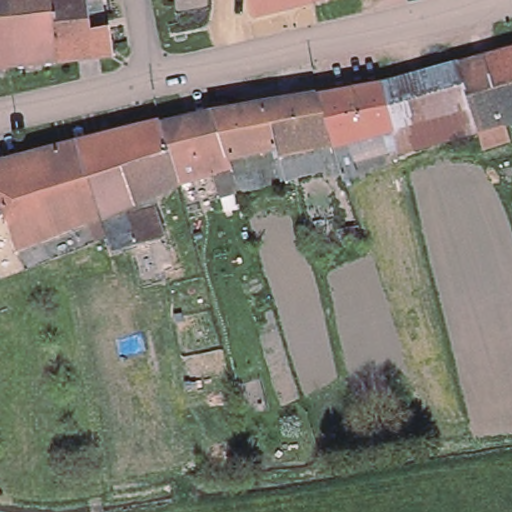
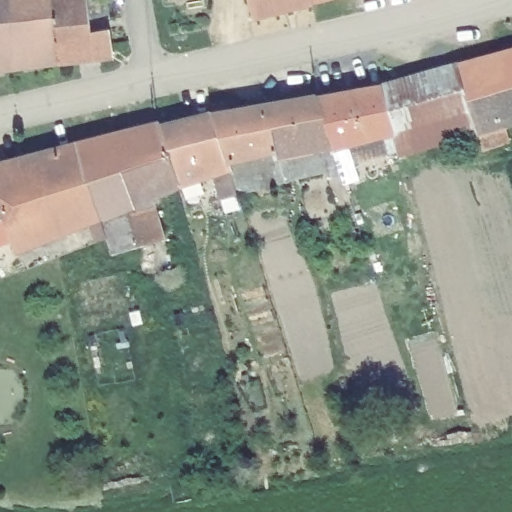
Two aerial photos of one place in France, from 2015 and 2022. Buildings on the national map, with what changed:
unchanged [(14,67),(0,68),(0,0),(10,0),(14,67)]
unchanged [(92,30),(55,35),(57,62),(14,67),(10,0),(88,0),(92,30)]
unchanged [(312,1),(292,6),(255,16),(250,0),(314,0),(312,1)]
unchanged [(92,30),(110,28),(114,55),(57,62),(55,35),(92,30)]
unchanged [(484,153),(479,132),(461,137),(399,154),(392,132),(395,131),(382,84),(457,64),(482,57),(512,49),(512,121),(504,124),(510,145),(484,153)]
unchanged [(339,168),(332,149),(304,153),(278,159),(276,149),(265,105),(317,96),(382,84),(395,131),(392,132),(387,133),(347,145),(353,164),(339,168)]
unchanged [(215,101),(230,99),(232,110),(265,105),(276,149),(231,160),(229,160),(216,113),(217,113),(215,101)]
unchanged [(221,199),(215,175),(210,176),(194,116),(216,113),(229,160),(231,160),(233,169),(230,170),(237,194),(221,199)]
unchanged [(194,116),(210,176),(177,186),(160,126),(194,116)]
unchanged [(160,123),(160,126),(177,186),(152,196),(148,197),(130,130),(160,123)]
unchanged [(130,130),(148,197),(126,206),(108,136),(130,130)]
unchanged [(108,136),(126,206),(100,217),(77,144),(108,136)]
unchanged [(77,144),(100,217),(80,226),(60,149),(77,144)]
unchanged [(60,149),(80,226),(47,239),(25,158),(60,149)]
unchanged [(47,239),(14,252),(3,216),(0,206),(0,164),(25,158),(47,239)]
unchanged [(126,206),(148,197),(152,196),(165,240),(112,255),(107,238),(100,217),(126,206)]
unchanged [(0,216),(0,206),(3,216),(0,216)]

